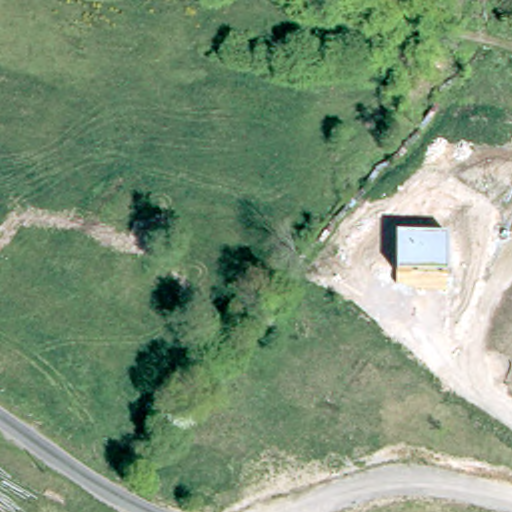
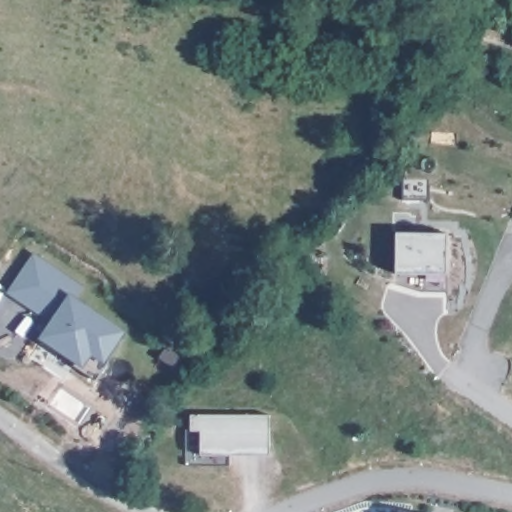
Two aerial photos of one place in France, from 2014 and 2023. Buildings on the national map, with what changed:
new [(398,183),(425,183),(425,204),(398,204),(398,183)]
unchanged [(395,271),(395,232),(447,233),(447,272),(395,271)]
new [(74,295),(127,330),(105,363),(97,380),(72,364),(75,361),(40,338),(50,322),(7,293),(34,252),(84,285),(74,295)]
new [(269,415),(270,454),(201,454),(201,430),(192,430),(192,414),(269,415)]
new [(406,512),(399,512),(399,510),(406,512)]

